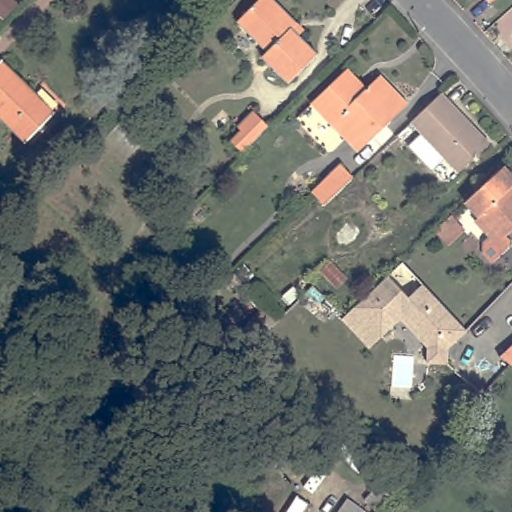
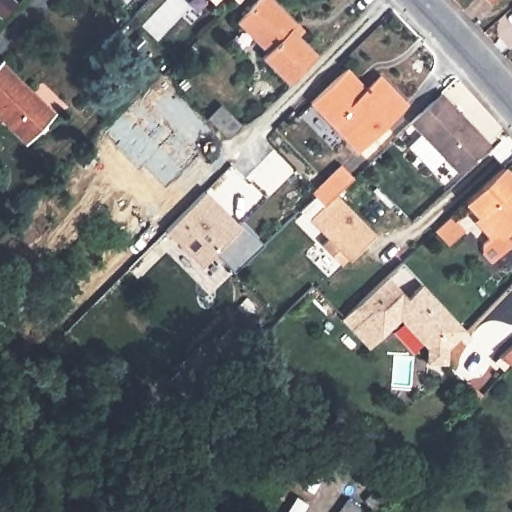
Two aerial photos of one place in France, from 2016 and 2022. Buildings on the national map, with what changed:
new [(210,0),(213,0),(212,1),(210,0)]
unchanged [(256,0),(283,0),(291,8),(257,42),(235,19),(256,0)]
unchanged [(492,0),(498,0),(495,3),(492,0)]
unchanged [(260,56),(266,50),(257,42),(291,8),(299,16),(293,23),(313,42),(321,50),(289,83),(279,74),(260,56)]
unchanged [(56,110),(26,139),(0,113),(0,64),(4,59),(56,110)]
unchanged [(365,94),(371,90),(385,75),(413,105),(363,154),(315,106),(347,75),(365,94)]
unchanged [(435,169),(412,148),(425,135),(414,125),(445,94),(475,126),(492,144),(461,172),(448,158),(436,170),(435,169)]
demolished [(224,141),(235,131),(232,127),(248,111),(265,127),(238,154),(224,141)]
new [(345,263),(325,243),(332,237),(304,208),(319,193),(347,163),(358,174),(329,202),(340,192),(378,230),(345,263)]
demolished [(347,163),(358,174),(329,202),(319,193),(347,163)]
unchanged [(512,166),(512,250),(504,259),(495,249),(495,239),(497,234),(503,228),(476,198),(499,177),(512,166)]
new [(209,189),(226,207),(240,224),(244,220),(266,245),(235,275),(214,252),(203,262),(170,227),(206,192),(209,189)]
unchanged [(463,205),(475,219),(458,237),(444,222),(463,205)]
unchanged [(381,337),(374,344),(370,347),(344,319),(347,316),(355,309),(388,278),(404,263),(465,330),(467,332),(462,337),(447,349),(447,364),(427,364),(427,349),(401,319),(381,337)]
unchanged [(512,347),(512,367),(509,365),(499,358),(512,347)]

